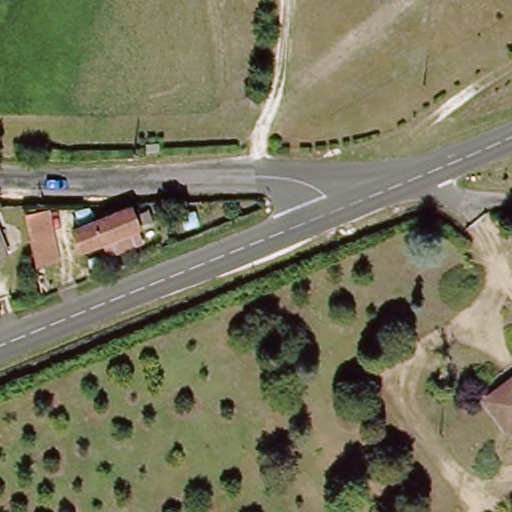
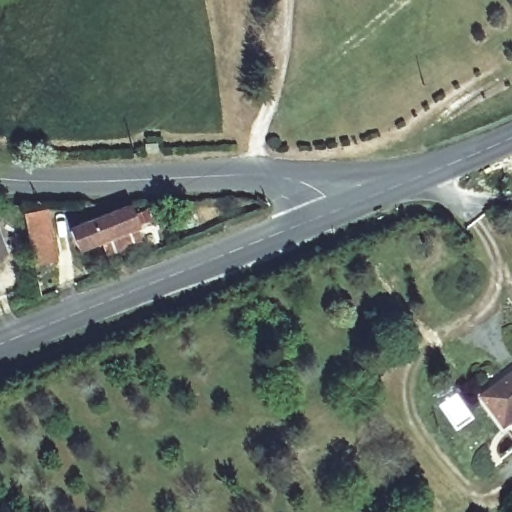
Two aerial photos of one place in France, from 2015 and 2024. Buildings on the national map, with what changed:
unchanged [(109,254),(105,243),(83,252),(74,231),(131,207),(139,227),(143,239),(109,254)]
unchanged [(31,217),(52,214),(57,246),(61,263),(42,267),(37,250),(31,217)]
unchanged [(0,259),(0,236),(7,256),(0,259)]
unchanged [(483,396),(512,376),(512,434),(483,396)]

